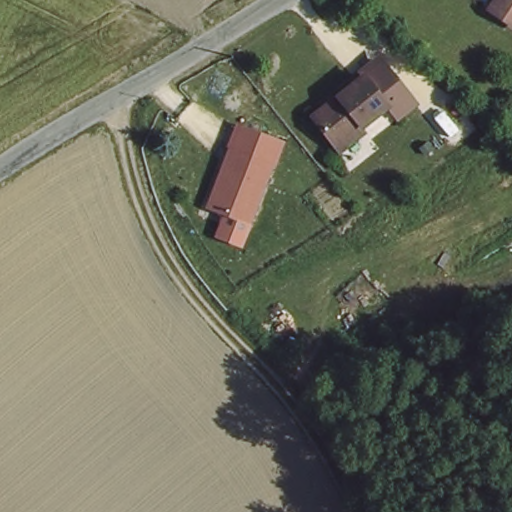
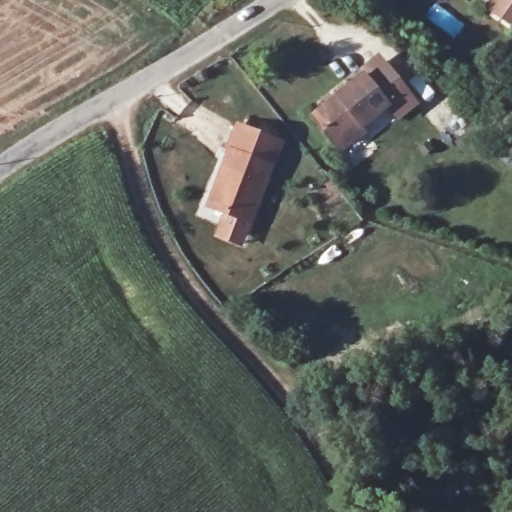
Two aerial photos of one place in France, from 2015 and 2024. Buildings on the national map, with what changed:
unchanged [(498,0),(512,0),(512,11),(498,0)]
unchanged [(339,151),(334,144),(310,115),(378,60),(402,92),(410,103),(396,114),(387,104),(348,133),(354,141),(339,151)]
unchanged [(277,135),(247,219),(207,206),(236,124),(277,135)]

